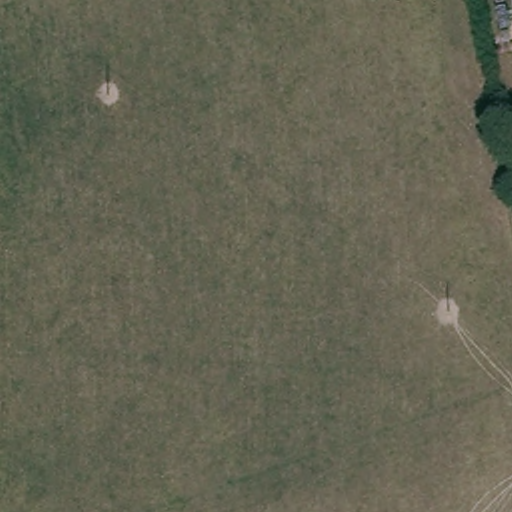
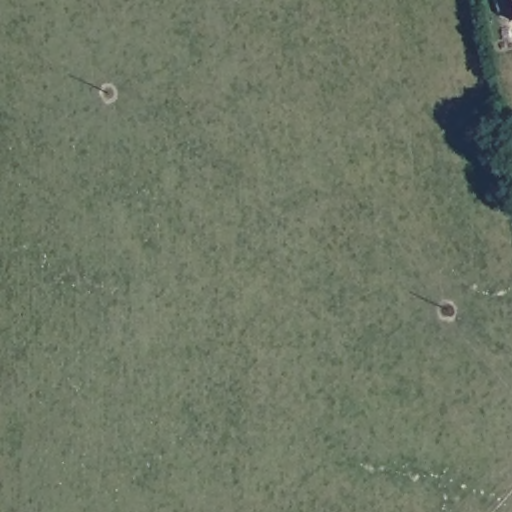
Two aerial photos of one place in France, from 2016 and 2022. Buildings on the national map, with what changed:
[]

